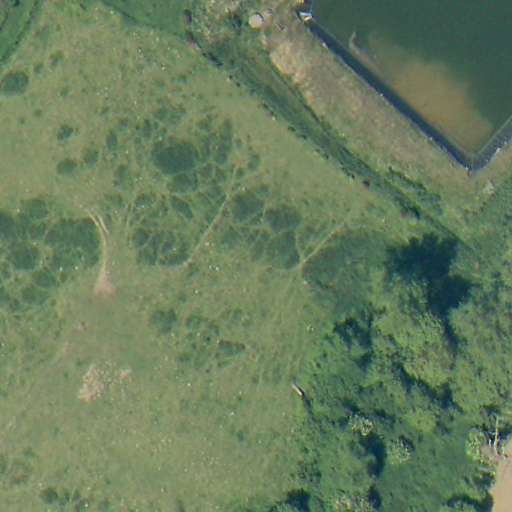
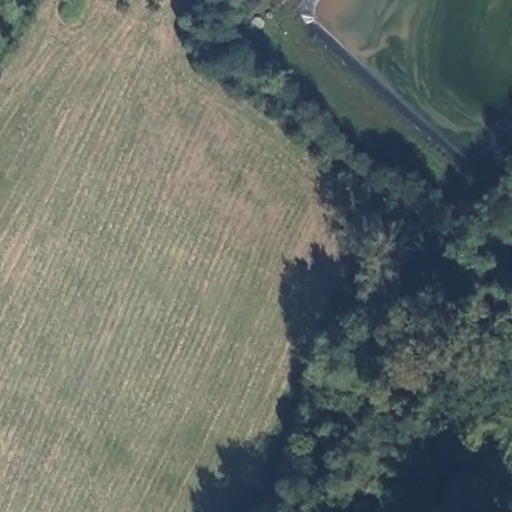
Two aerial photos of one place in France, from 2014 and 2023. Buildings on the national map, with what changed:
[]

